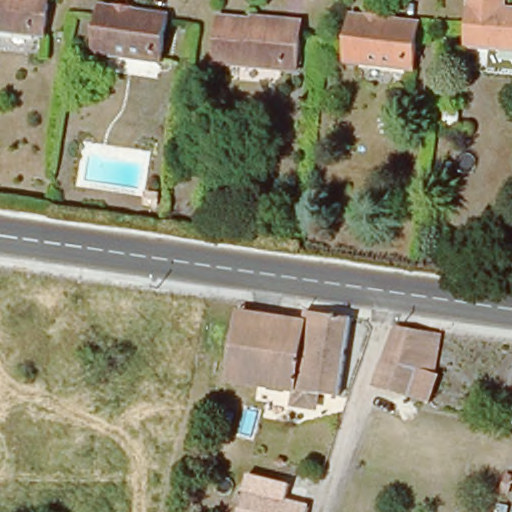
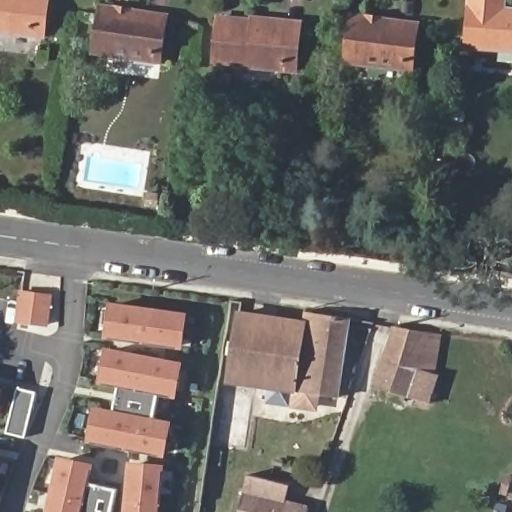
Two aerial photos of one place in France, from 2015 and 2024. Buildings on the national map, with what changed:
unchanged [(49,39),(0,34),(0,0),(53,0),(49,39)]
unchanged [(467,42),(472,0),(509,0),(509,6),(512,6),(512,47),(467,42)]
unchanged [(160,60),(92,51),(98,3),(166,12),(160,60)]
unchanged [(213,61),(216,13),(249,17),(300,22),(298,32),(295,69),(213,61)]
unchanged [(350,13),(417,21),(412,69),(344,61),(350,13)]
new [(20,292),(51,297),(46,327),(16,323),(20,292)]
new [(184,348),(106,337),(111,301),(189,312),(184,348)]
unchanged [(335,395),(316,392),(314,407),(291,403),(293,391),(229,380),(240,312),(304,322),(305,311),(348,317),(335,395)]
unchanged [(393,330),(437,338),(431,374),(437,377),(427,404),(371,387),(393,330)]
new [(90,440),(96,406),(114,409),(119,385),(101,382),(109,347),(184,361),(176,397),(159,393),(154,417),(172,421),(165,456),(90,440)]
demolished [(0,432),(0,388),(10,390),(0,432)]
new [(18,389),(37,394),(26,439),(6,434),(18,389)]
new [(0,454),(1,454),(0,458),(0,454)]
new [(94,462),(89,483),(82,512),(46,512),(60,454),(94,462)]
new [(164,464),(160,512),(124,512),(129,461),(164,464)]
unchanged [(288,501),(310,506),(308,512),(241,512),(245,491),(250,492),(254,475),(292,484),(288,501)]
new [(82,512),(89,483),(117,489),(112,512),(82,512)]

